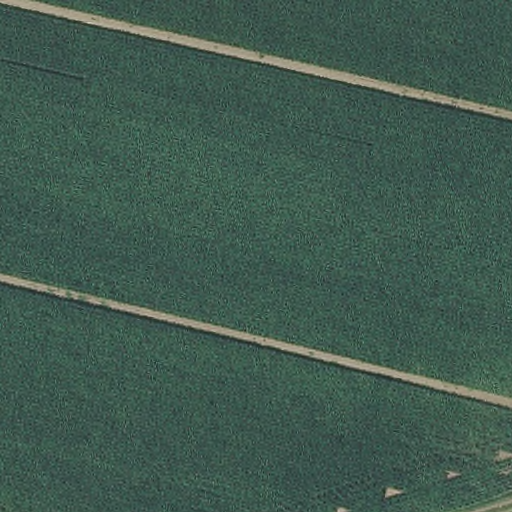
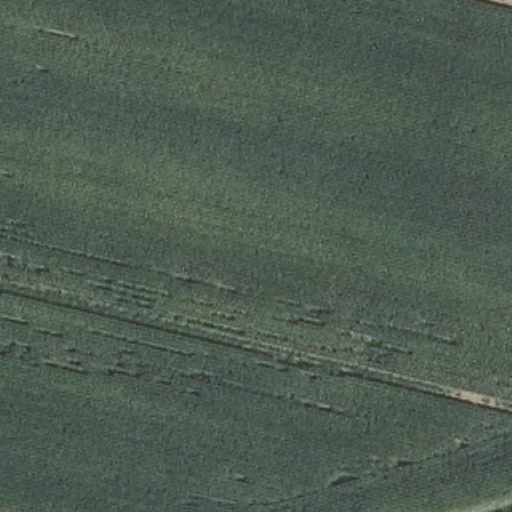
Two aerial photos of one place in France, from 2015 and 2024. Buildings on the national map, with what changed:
[]

